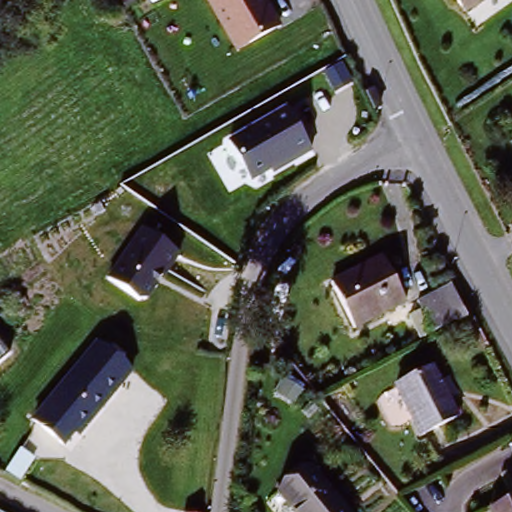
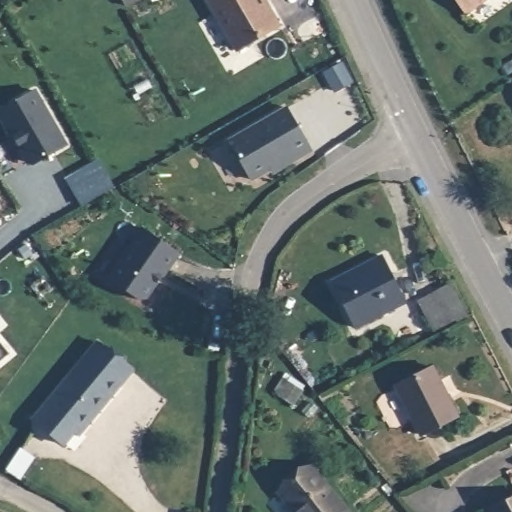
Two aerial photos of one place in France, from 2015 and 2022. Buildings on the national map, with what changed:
unchanged [(122,0),(141,0),(125,8),(122,0)]
unchanged [(235,54),(205,0),(266,0),(280,27),(235,54)]
unchanged [(460,0),(478,0),(467,8),(460,0)]
new [(33,89),(64,143),(31,162),(25,160),(0,115),(0,108),(33,89)]
unchanged [(313,153),(251,182),(225,139),(287,106),(313,153)]
new [(95,158),(111,186),(80,204),(65,176),(95,158)]
unchanged [(145,229),(179,253),(150,296),(138,297),(112,276),(145,229)]
unchanged [(332,278),(382,252),(405,298),(355,324),(332,278)]
unchanged [(437,327),(422,298),(445,287),(460,316),(437,327)]
unchanged [(67,437),(37,414),(97,335),(127,357),(67,437)]
unchanged [(0,361),(0,342),(10,353),(0,361)]
unchanged [(397,382),(432,364),(456,412),(421,429),(397,382)]
unchanged [(7,474),(21,451),(32,459),(18,480),(7,474)]
unchanged [(351,512),(298,512),(275,484),(307,458),(351,512)]
unchanged [(512,495),(512,512),(495,512),(492,505),(512,495)]
unchanged [(182,509),(206,509),(206,512),(182,512),(182,509)]

